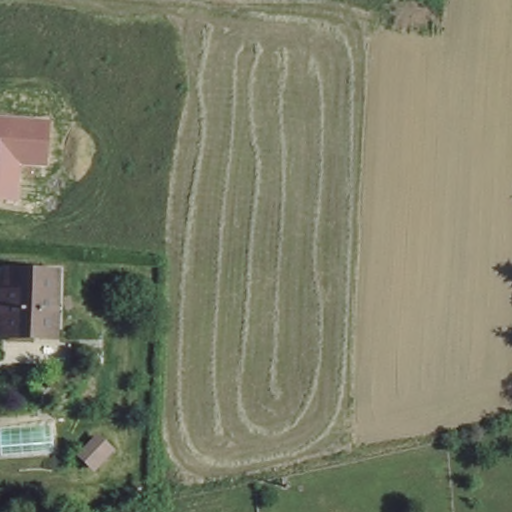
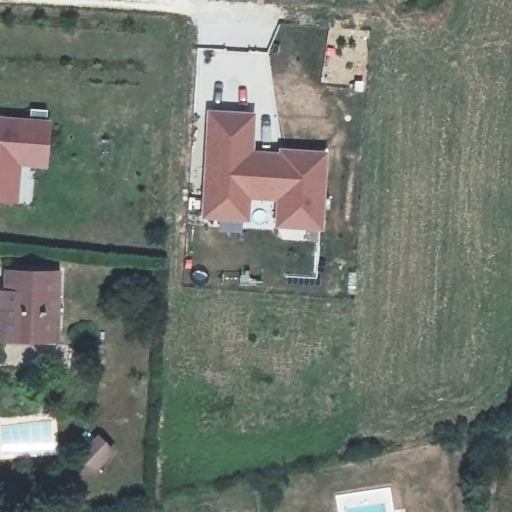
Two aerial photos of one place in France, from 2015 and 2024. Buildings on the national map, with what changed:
new [(323,230),(275,226),(275,200),(251,199),(249,220),(201,217),(205,110),(254,113),(253,147),(278,150),(278,147),(327,151),(323,230)]
new [(8,200),(0,199),(0,119),(50,122),(47,164),(20,162),(17,200),(8,200)]
unchanged [(4,290),(5,267),(54,268),(51,337),(3,336),(0,336),(0,290),(4,290)]

